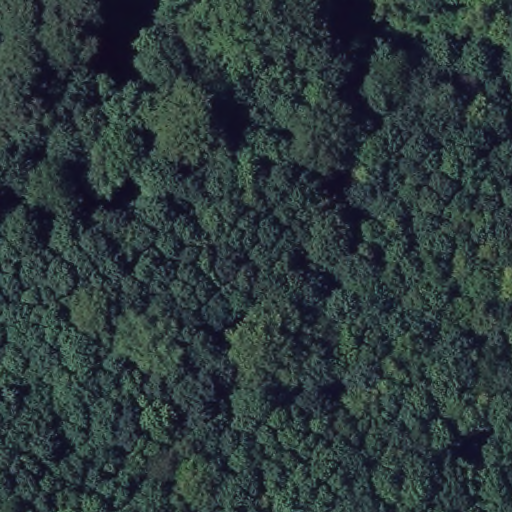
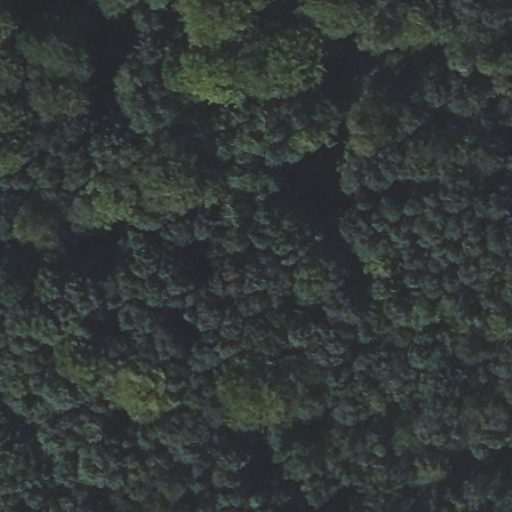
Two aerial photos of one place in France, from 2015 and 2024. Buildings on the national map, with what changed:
unchanged [(189,61),(226,71),(218,105),(177,95),(189,61)]

